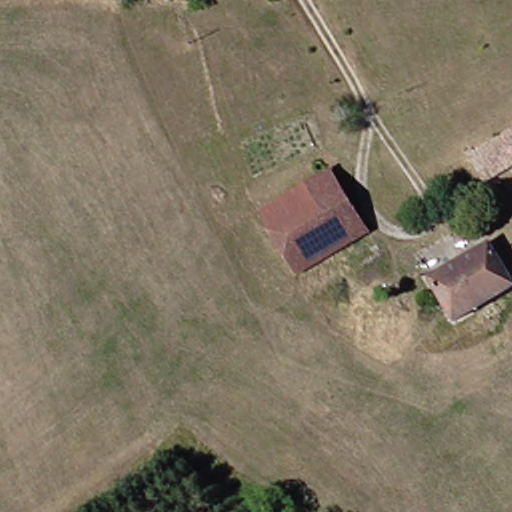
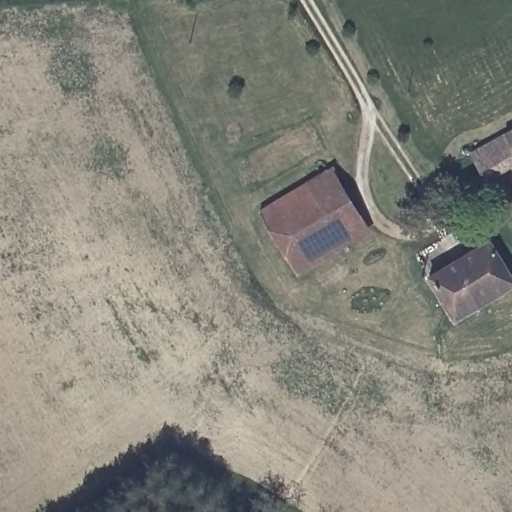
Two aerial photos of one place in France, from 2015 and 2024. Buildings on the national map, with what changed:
unchanged [(475,149),(512,127),(512,164),(490,177),(475,149)]
unchanged [(267,212),(336,173),(344,189),(322,201),(351,247),(301,274),(267,212)]
unchanged [(371,236),(351,247),(322,201),(344,189),(371,236)]
unchanged [(449,317),(426,276),(493,238),(512,273),(512,289),(449,317)]

